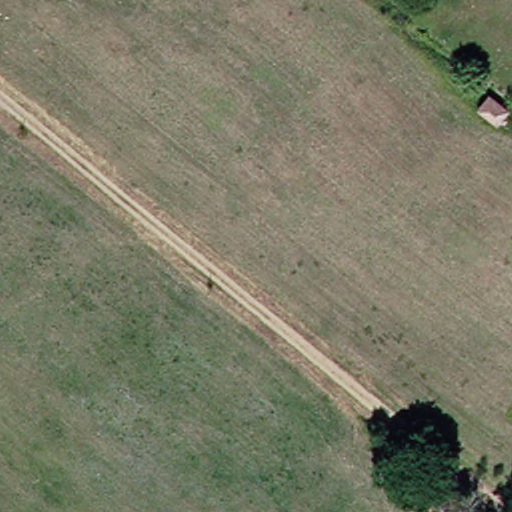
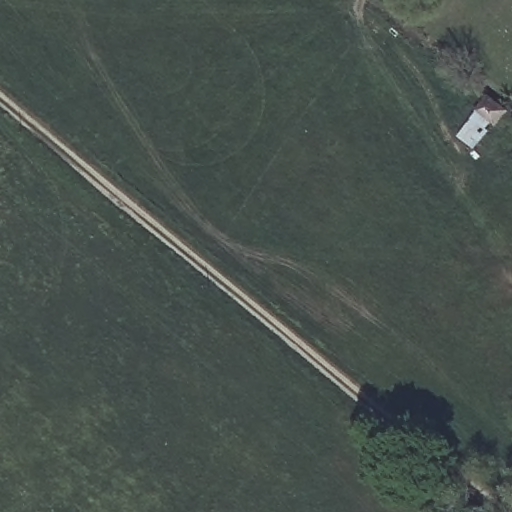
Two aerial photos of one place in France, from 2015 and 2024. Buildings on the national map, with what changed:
unchanged [(483,126),(461,112),(472,96),(493,111),(483,126)]

